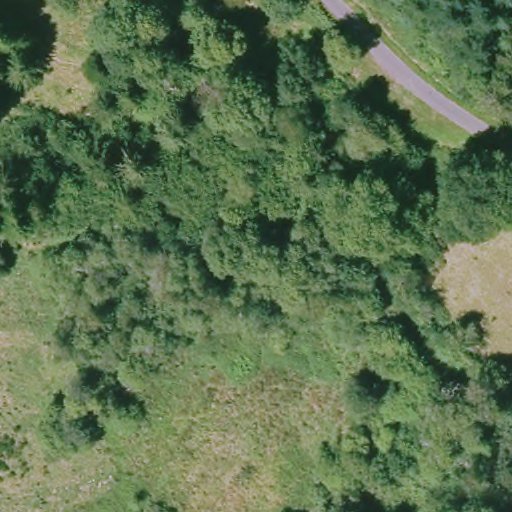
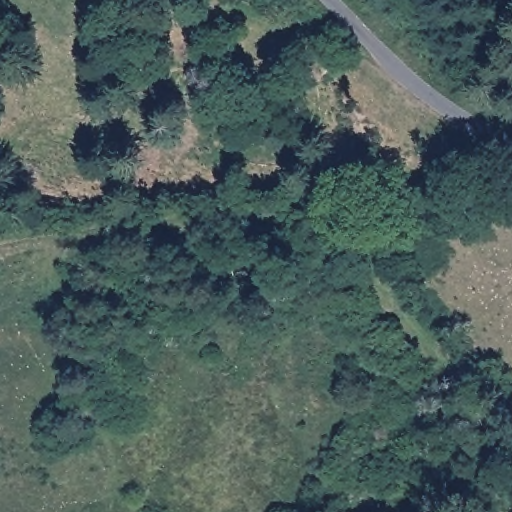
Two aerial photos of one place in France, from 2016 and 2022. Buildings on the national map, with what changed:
[]

